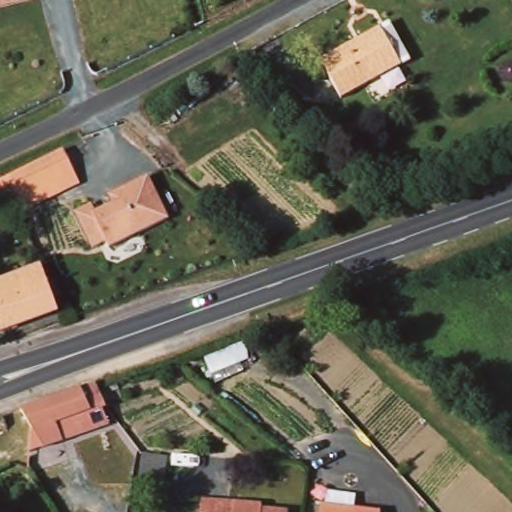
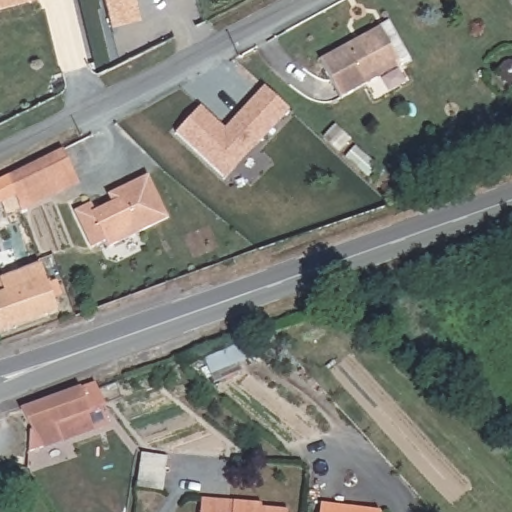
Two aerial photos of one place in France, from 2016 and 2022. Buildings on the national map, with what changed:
unchanged [(0,11),(0,0),(36,0),(0,11)]
unchanged [(386,27),(407,66),(345,99),(325,58),(386,27)]
new [(196,104),(219,128),(261,88),(285,112),(217,178),(170,129),(196,104)]
unchanged [(12,180),(67,157),(80,187),(22,211),(19,199),(18,199),(0,206),(0,185),(12,180)]
unchanged [(92,209),(105,203),(102,195),(146,173),(165,217),(105,244),(102,238),(89,246),(70,211),(87,202),(92,209)]
unchanged [(2,278),(3,278),(23,271),(24,275),(41,269),(55,310),(18,322),(0,328),(0,296),(6,294),(2,278)]
unchanged [(126,289),(129,301),(119,305),(115,293),(126,289)]
unchanged [(232,351),(241,373),(215,384),(206,360),(232,351)]
unchanged [(87,383),(96,411),(90,413),(94,424),(85,427),(87,434),(23,456),(7,411),(71,389),(87,383)]
unchanged [(1,447),(0,447),(0,444),(1,447)]
unchanged [(167,460),(167,493),(138,491),(140,458),(167,460)]
unchanged [(264,508),(285,512),(200,512),(204,491),(265,501),(264,508)]
unchanged [(318,512),(319,503),(366,512),(318,512)]

